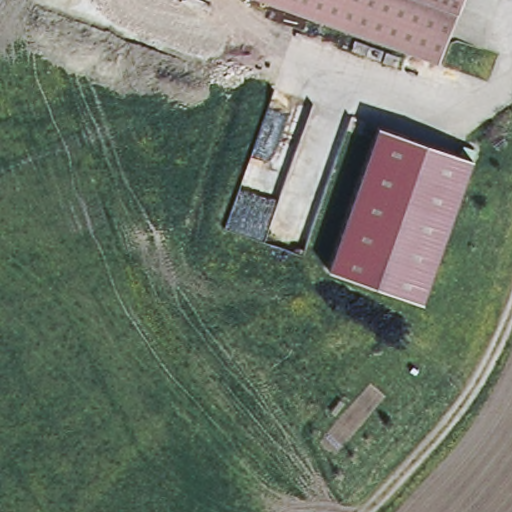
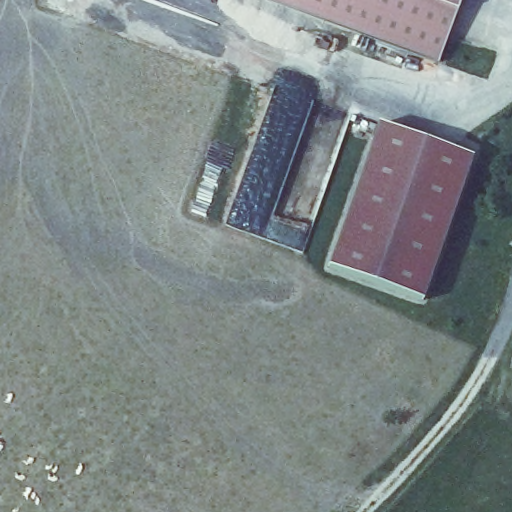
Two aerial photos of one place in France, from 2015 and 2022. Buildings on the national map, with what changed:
unchanged [(436,62),(261,0),(459,0),(455,11),(436,62)]
unchanged [(422,304),(326,272),(375,128),(428,146),(458,157),(461,147),(474,151),(465,176),(422,304)]

